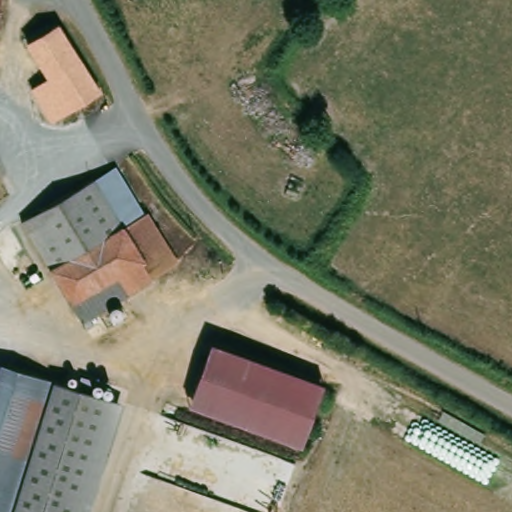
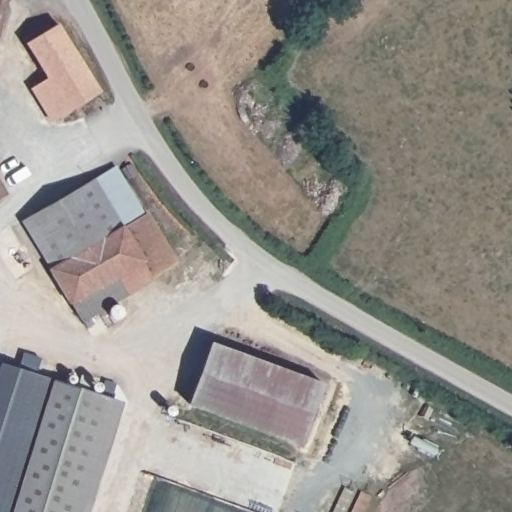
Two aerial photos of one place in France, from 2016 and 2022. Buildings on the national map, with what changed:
unchanged [(0,9),(0,0),(2,0),(0,9)]
unchanged [(95,93),(48,123),(26,89),(44,78),(22,43),(52,25),(95,93)]
unchanged [(144,215),(123,228),(94,179),(115,167),(144,215)]
unchanged [(152,279),(147,282),(82,322),(21,221),(41,209),(94,179),(123,228),(152,279)]
unchanged [(177,263),(152,279),(123,228),(144,215),(147,214),(177,263)]
unchanged [(304,442),(187,405),(206,343),(323,380),(304,442)]
unchanged [(1,364),(108,397),(72,512),(0,512),(0,366),(1,364)]

